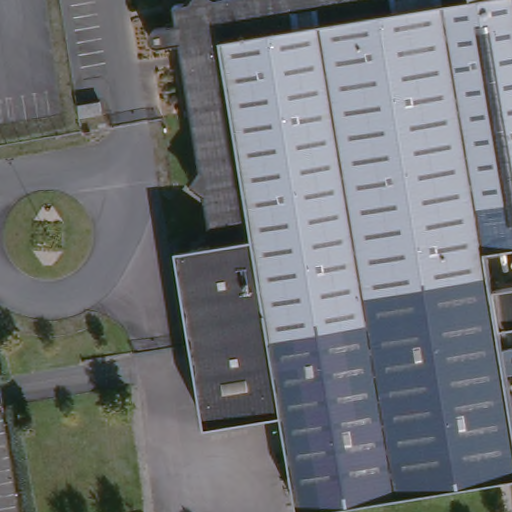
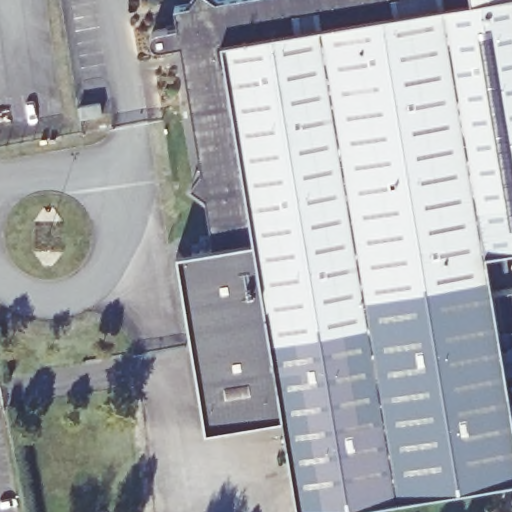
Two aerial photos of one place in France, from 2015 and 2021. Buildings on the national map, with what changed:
unchanged [(162,51),(161,51),(160,51),(159,50),(158,50),(157,50),(157,49),(156,49),(156,48),(155,48),(155,47),(154,47),(154,46),(153,46),(153,45),(152,45),(152,44),(152,43),(152,42),(152,41),(152,40),(152,39),(152,38),(152,37),(153,36),(154,35),(154,34),(155,34),(155,33),(156,33),(157,32),(158,32),(158,31),(159,31),(160,31),(175,28),(172,11),(190,8),(194,0),(210,0),(214,3),(233,0),(512,0),(512,248),(491,251),(494,293),(512,290),(512,331),(502,333),(512,390),(512,477),(322,512),(305,512),(288,416),(280,418),(212,430),(179,254),(215,247),(205,195),(187,189),(201,172),(179,48),(164,51),(163,51),(162,51)]
unchanged [(102,94),(103,109),(86,109),(84,94),(102,94)]

